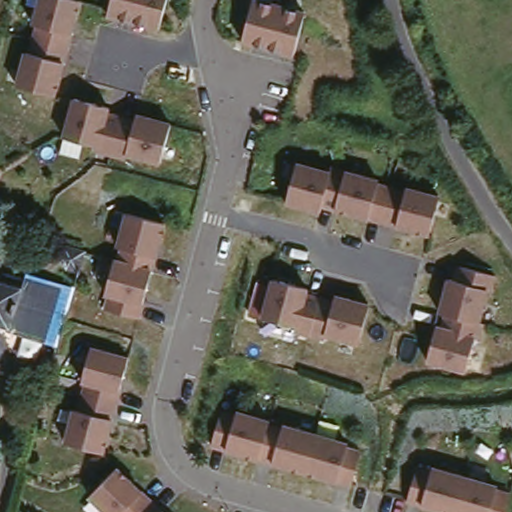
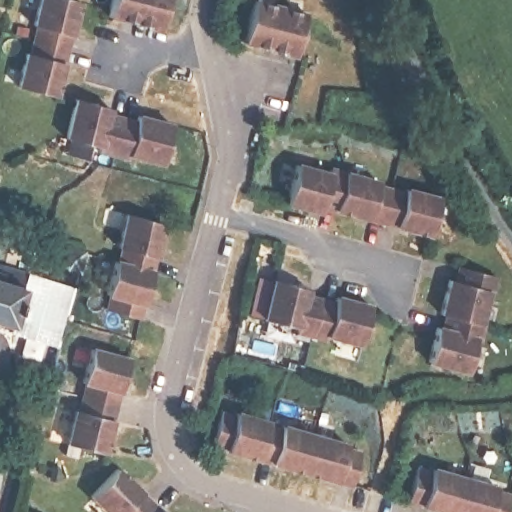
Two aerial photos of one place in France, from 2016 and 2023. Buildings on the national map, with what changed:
unchanged [(58,95),(21,84),(42,0),(80,0),(84,1),(58,95)]
unchanged [(109,19),(113,0),(166,0),(160,30),(109,19)]
unchanged [(295,54),(246,43),(257,0),(260,0),(304,12),(295,54)]
unchanged [(169,122),(160,165),(128,157),(126,161),(95,153),(99,142),(66,135),(75,99),(169,122)]
unchanged [(429,235),(367,215),(323,202),(321,210),(286,200),(298,162),(332,174),(334,166),(349,171),(381,179),(379,185),(408,190),(437,197),(429,235)]
unchanged [(165,224),(147,301),(145,317),(104,310),(106,296),(125,215),(165,224)]
unchanged [(75,270),(72,268),(69,265),(67,261),(66,256),(67,252),(68,247),(86,253),(81,273),(75,270)]
unchanged [(440,315),(449,279),(459,281),(461,264),(502,273),(500,293),(493,293),(484,337),(473,334),(466,370),(428,361),(437,325),(440,315)]
unchanged [(0,328),(0,274),(6,275),(3,281),(26,290),(12,332),(0,328)]
unchanged [(11,339),(12,332),(26,290),(30,275),(77,290),(59,355),(11,339)]
unchanged [(367,302),(359,343),(329,336),(327,340),(297,333),(299,326),(263,317),(273,281),(367,302)]
unchanged [(129,358),(106,452),(67,443),(93,347),(129,358)]
unchanged [(262,457),(227,447),(218,445),(224,410),(237,413),(270,423),(262,457)]
unchanged [(350,442),(350,446),(363,451),(353,483),(340,478),(339,481),(274,461),(285,426),(350,442)]
unchanged [(165,512),(105,512),(89,498),(119,466),(165,512)]
unchanged [(512,490),(512,492),(507,512),(459,512),(426,503),(410,500),(420,466),(435,467),(499,483),(512,490)]

